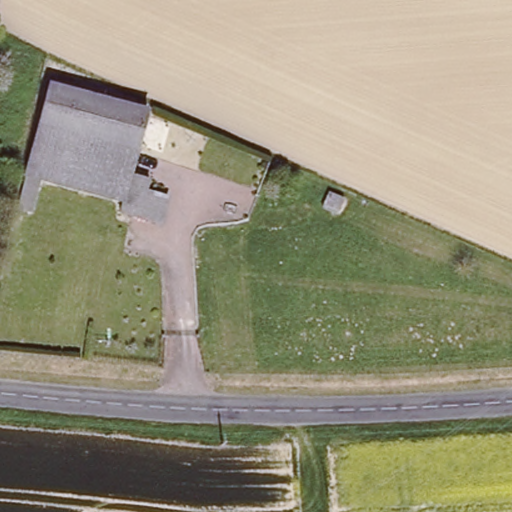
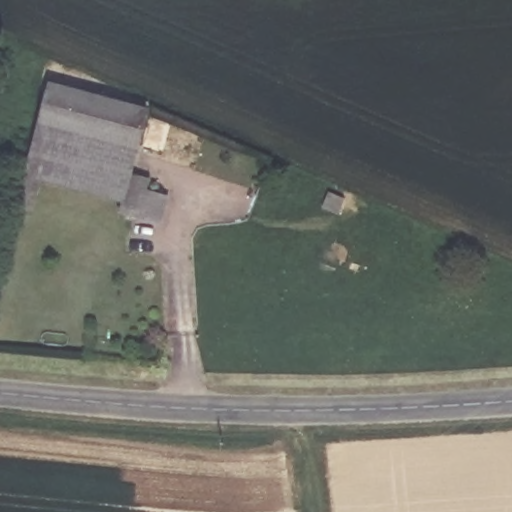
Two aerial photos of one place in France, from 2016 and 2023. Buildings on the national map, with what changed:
unchanged [(126,175),(120,200),(22,175),(47,86),(142,111),(126,175)]
unchanged [(145,180),(142,195),(162,200),(156,224),(117,214),(120,200),(126,175),(145,180)]

